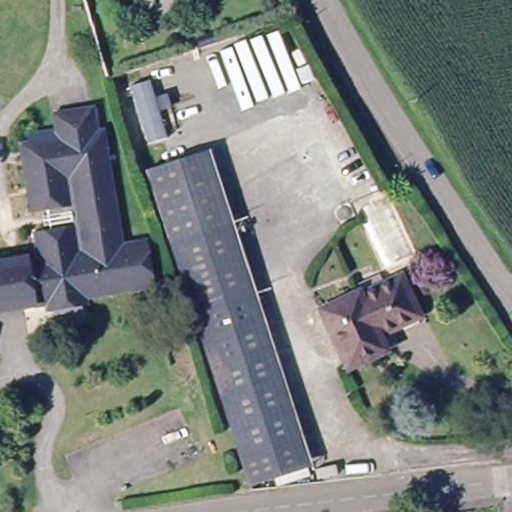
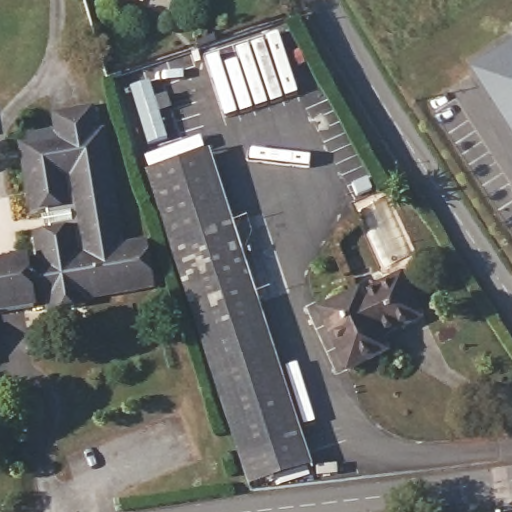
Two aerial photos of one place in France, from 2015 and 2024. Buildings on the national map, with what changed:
new [(512,33),(512,125),(471,61),(512,33)]
unchanged [(160,81),(177,138),(158,144),(141,86),(160,81)]
unchanged [(26,262),(28,265),(40,263),(36,239),(51,237),(46,214),(32,217),(30,202),(24,168),(21,149),(28,148),(28,141),(58,136),(56,117),(65,116),(96,112),(100,137),(107,136),(109,152),(115,186),(119,216),(123,236),(125,250),(150,247),(156,291),(138,294),(118,297),(88,301),(88,308),(49,314),(48,307),(0,315),(0,266),(26,262)]
unchanged [(242,456),(156,169),(211,153),(299,437),(242,456)]
unchanged [(360,294),(362,298),(404,280),(423,319),(377,339),(387,362),(351,377),(330,329),(321,311),(343,302),(360,294)]
unchanged [(307,466),(252,483),(242,456),(299,437),(307,466)]

